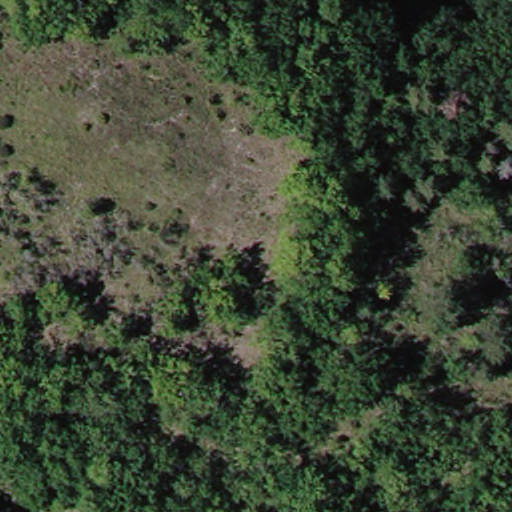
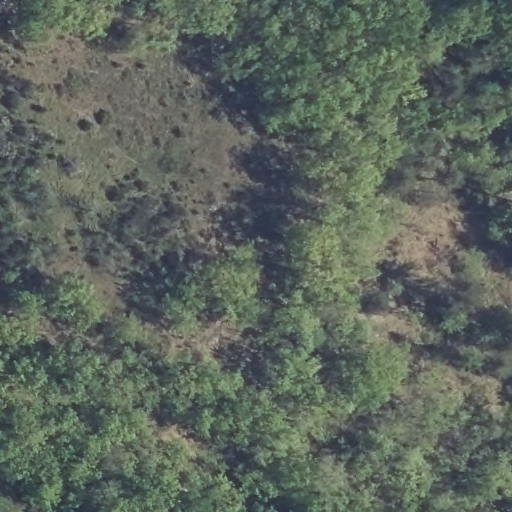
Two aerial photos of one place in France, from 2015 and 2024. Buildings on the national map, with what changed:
[]

